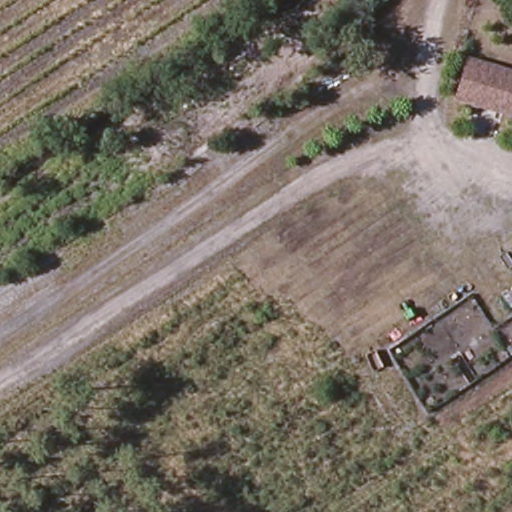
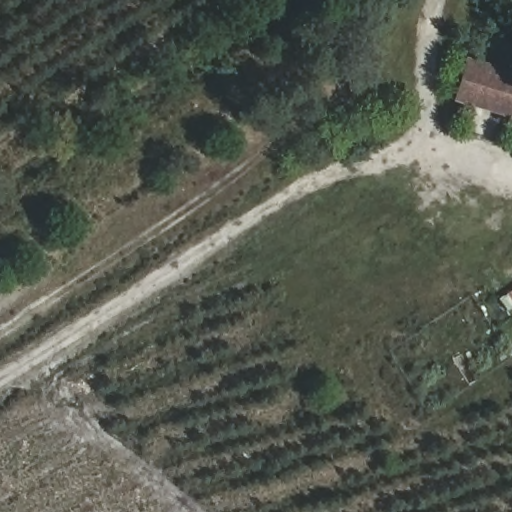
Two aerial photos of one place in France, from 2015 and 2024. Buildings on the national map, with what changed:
unchanged [(512,119),(455,102),(468,58),(512,72),(512,119)]
unchanged [(500,297),(512,289),(512,309),(510,310),(500,297)]

